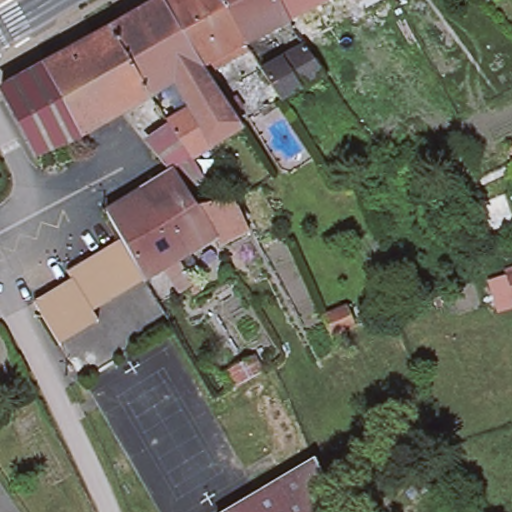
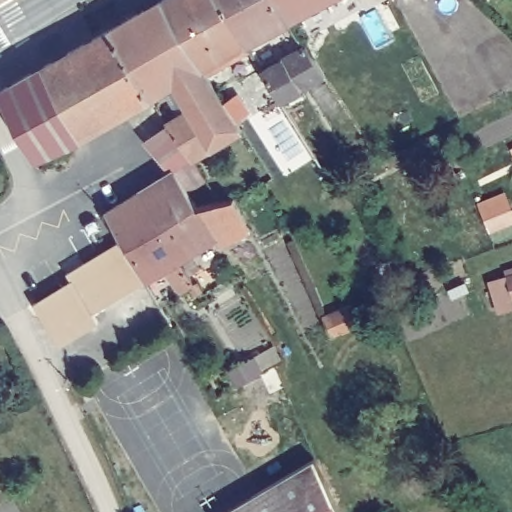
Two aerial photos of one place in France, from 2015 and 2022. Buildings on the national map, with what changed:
unchanged [(212,81),(234,116),(237,120),(207,138),(186,102),(172,76),(145,91),(105,22),(146,0),(162,0),(212,81)]
unchanged [(240,34),(217,46),(232,71),(212,81),(162,0),(221,0),(240,34)]
unchanged [(287,11),(240,34),(221,0),(281,0),(287,11)]
unchanged [(287,11),(281,0),(308,0),(287,11)]
unchanged [(358,1),(358,0),(360,0),(358,1)]
unchanged [(145,91),(113,108),(78,127),(66,135),(28,63),(105,22),(145,91)]
unchanged [(317,80),(315,76),(277,97),(257,66),(302,42),(321,72),(324,77),(317,80)]
unchanged [(39,145),(30,149),(0,92),(0,78),(28,63),(66,135),(39,145)]
unchanged [(134,184),(166,164),(157,154),(145,142),(167,124),(162,116),(186,102),(207,138),(202,141),(212,160),(199,168),(181,179),(193,198),(217,193),(230,189),(245,221),(215,238),(210,230),(187,244),(175,223),(160,233),(134,184)]
unchanged [(160,233),(175,223),(187,244),(172,253),(187,278),(173,286),(158,262),(137,275),(115,233),(100,205),(134,184),(160,233)]
new [(505,192),(512,213),(512,224),(487,234),(475,202),(505,192)]
unchanged [(137,275),(84,305),(65,273),(61,267),(115,233),(137,275)]
unchanged [(84,305),(90,314),(52,337),(27,296),(65,273),(84,305)]
unchanged [(512,277),(512,291),(508,278),(510,277),(512,277)]
unchanged [(330,334),(320,313),(344,304),(353,326),(330,334)]
unchanged [(230,369),(258,356),(265,370),(238,384),(230,369)]
unchanged [(343,512),(233,512),(318,460),(343,512)]

